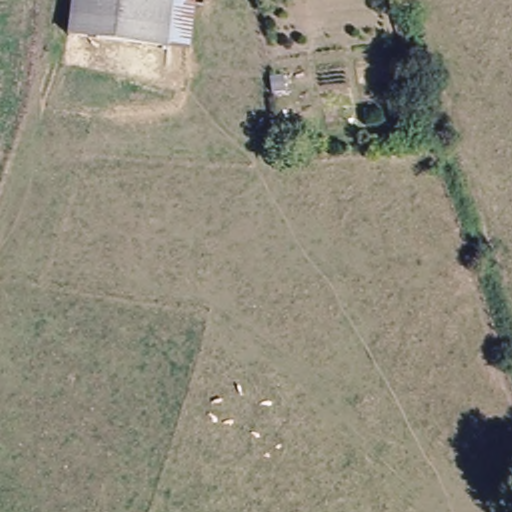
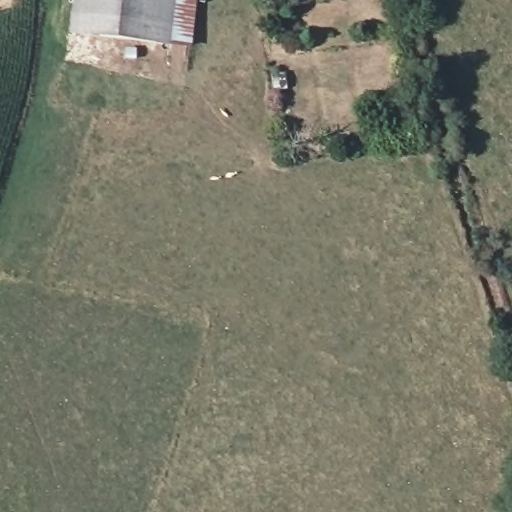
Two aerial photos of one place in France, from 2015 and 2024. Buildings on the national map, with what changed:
unchanged [(197,0),(192,51),(73,37),(76,0),(197,0)]

